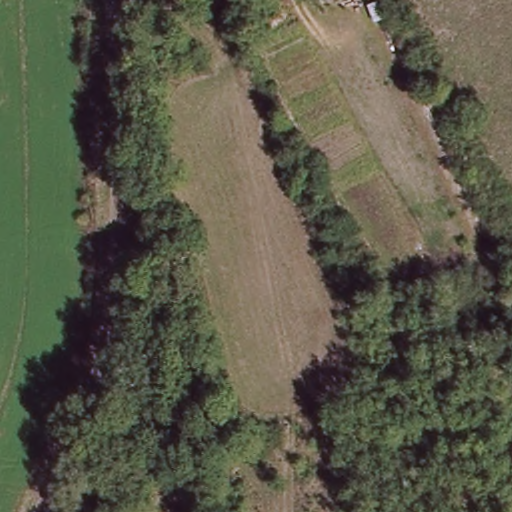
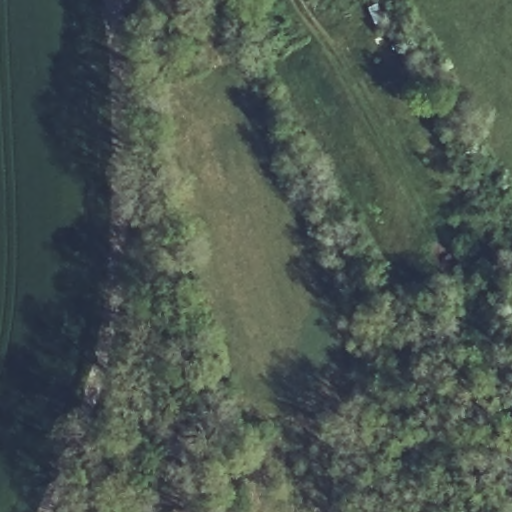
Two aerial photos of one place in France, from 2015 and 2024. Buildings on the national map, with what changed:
[]

